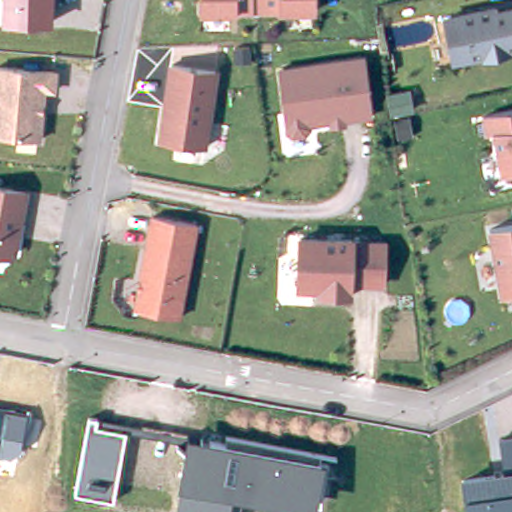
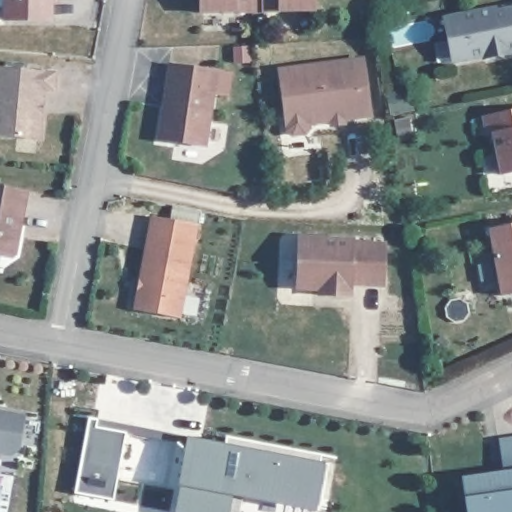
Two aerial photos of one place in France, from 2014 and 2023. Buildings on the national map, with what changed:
unchanged [(1,19),(2,0),(54,0),(53,21),(1,19)]
unchanged [(316,11),(280,11),(270,11),(247,11),(237,12),(202,14),(202,0),(316,0),(316,11)]
unchanged [(493,5),(494,9),(512,6),(512,52),(448,63),(438,15),(493,5)]
unchanged [(374,115),(310,124),(305,134),(294,136),(287,130),(278,65),(364,54),(374,115)]
unchanged [(218,70),(208,146),(156,138),(165,62),(218,70)]
unchanged [(0,66),(57,70),(55,93),(45,93),(42,138),(0,136),(0,66)]
unchanged [(512,110),(512,173),(494,176),(487,135),(482,136),(477,114),(512,110)]
unchanged [(16,258),(0,255),(0,185),(30,191),(16,258)]
unchanged [(182,316),(133,308),(151,215),(198,225),(182,316)]
unchanged [(512,223),(512,294),(497,297),(483,228),(512,223)]
unchanged [(354,236),(387,240),(385,286),(355,285),(353,298),(317,298),(317,290),(296,289),(300,235),(354,236)]
unchanged [(18,450),(8,456),(0,456),(0,409),(25,415),(18,450)]
unchanged [(75,493),(90,418),(100,420),(100,428),(127,431),(113,500),(75,493)]
unchanged [(322,461),(312,511),(232,497),(228,512),(175,512),(187,438),(322,461)]
unchanged [(465,512),(463,497),(460,479),(503,472),(497,441),(512,439),(512,512),(465,512)]

